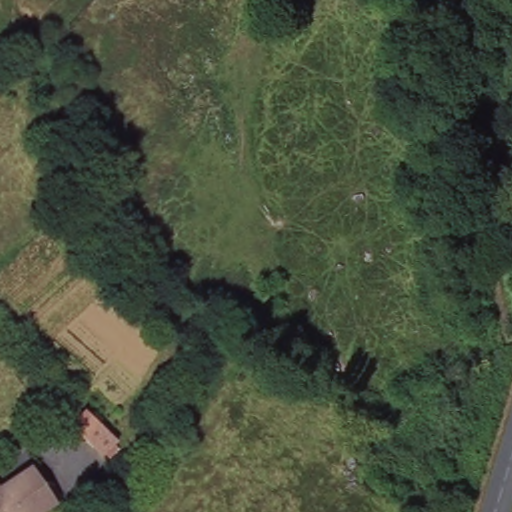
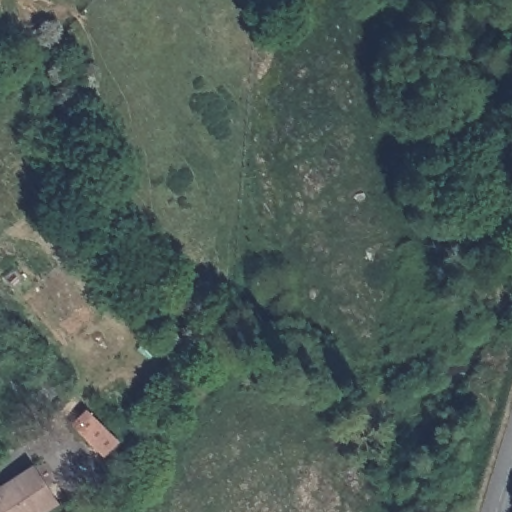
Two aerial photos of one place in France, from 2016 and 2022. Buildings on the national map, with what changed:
unchanged [(75,409),(108,441),(94,457),(61,425),(75,409)]
unchanged [(46,501),(30,512),(0,512),(0,483),(24,467),(46,501)]

